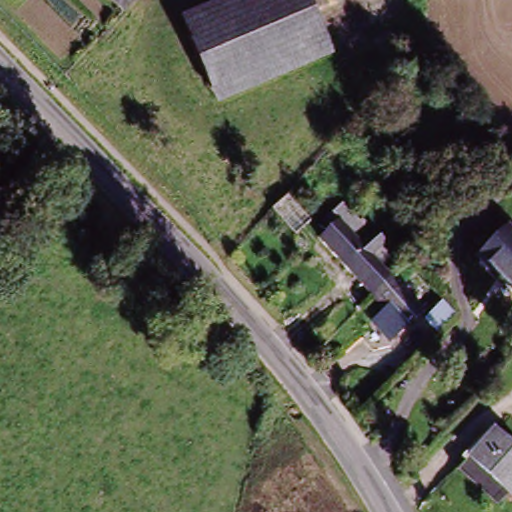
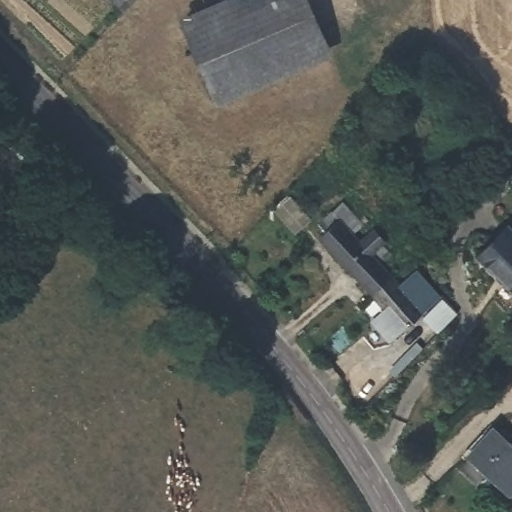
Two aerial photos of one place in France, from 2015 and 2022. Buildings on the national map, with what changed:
unchanged [(105,0),(138,0),(122,16),(105,0)]
unchanged [(237,0),(303,0),(331,60),(220,108),(179,25),(237,0)]
unchanged [(303,216),(290,230),(288,232),(261,205),(264,202),(277,189),(303,216)]
unchanged [(370,218),(382,230),(380,235),(388,243),(375,255),(389,268),(390,269),(369,290),(313,230),(326,219),(321,212),(338,196),(357,216),(348,225),(355,233),(370,218)]
unchanged [(512,233),(512,295),(481,263),(512,233)]
unchanged [(421,304),(391,333),(382,333),(373,324),(373,313),(382,304),(369,290),(390,269),(421,304)]
unchanged [(421,309),(440,289),(451,300),(431,320),(421,309)]
unchanged [(512,454),(512,496),(507,502),(471,467),(497,439),(512,454)]

